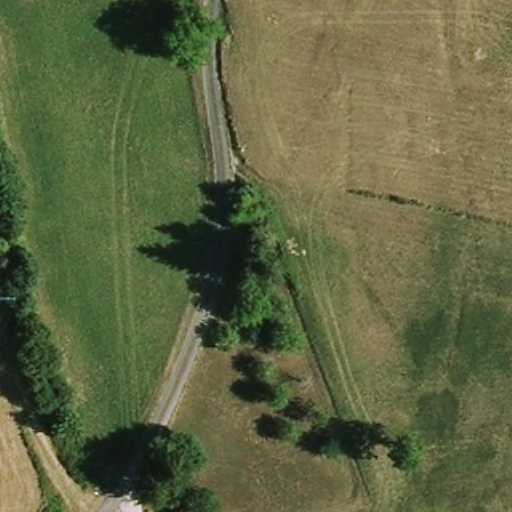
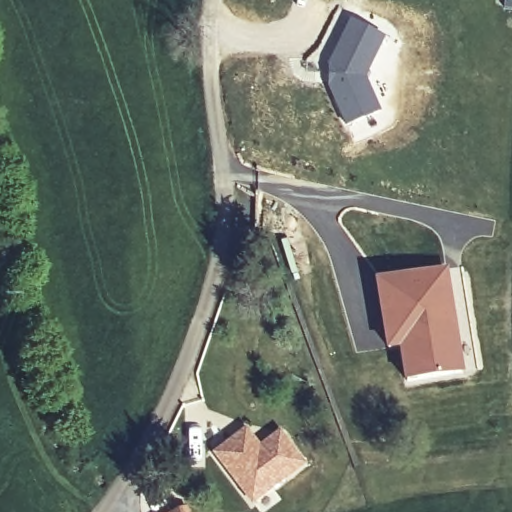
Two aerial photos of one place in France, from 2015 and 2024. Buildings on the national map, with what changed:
new [(386,36),(367,76),(382,111),(344,126),(329,85),(330,68),(351,20),(386,36)]
new [(444,271),(462,371),(406,381),(402,344),(391,347),(379,280),(444,271)]
new [(260,444),(281,429),(307,463),(252,505),(212,453),(246,427),(260,444)]
new [(185,507),(187,512),(172,512),(185,507)]

